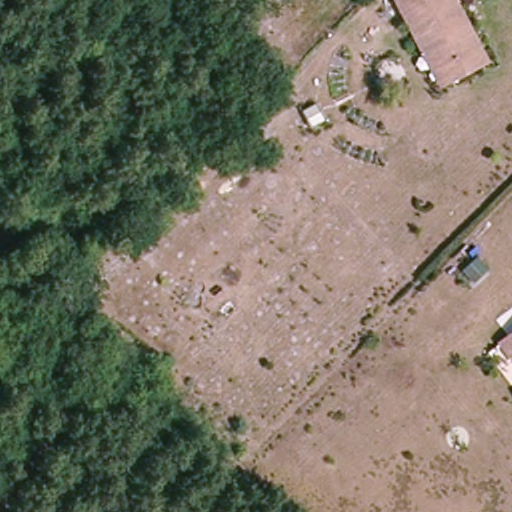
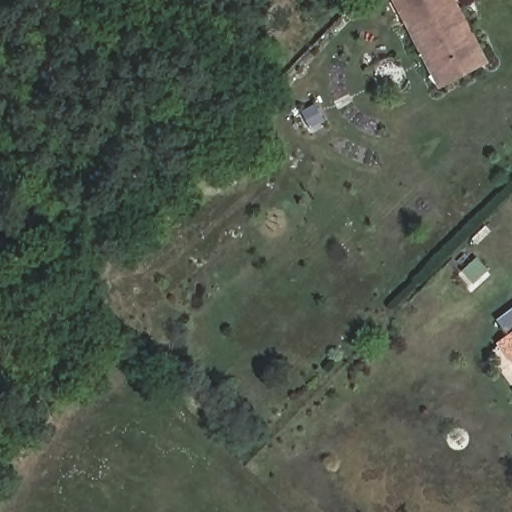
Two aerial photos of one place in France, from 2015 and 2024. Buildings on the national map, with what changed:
unchanged [(438,72),(472,54),(447,2),(452,0),(456,0),(487,67),(438,92),(395,1),(397,0),(403,0),(438,72)]
unchanged [(447,2),(472,54),(438,72),(403,0),(452,0),(447,2)]
unchanged [(511,365),(497,346),(512,335),(512,365),(511,365)]

